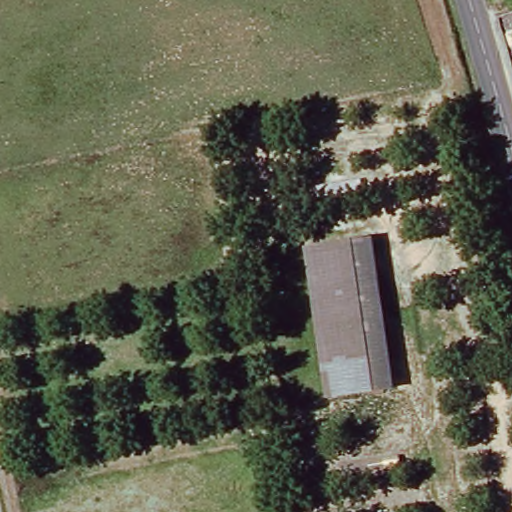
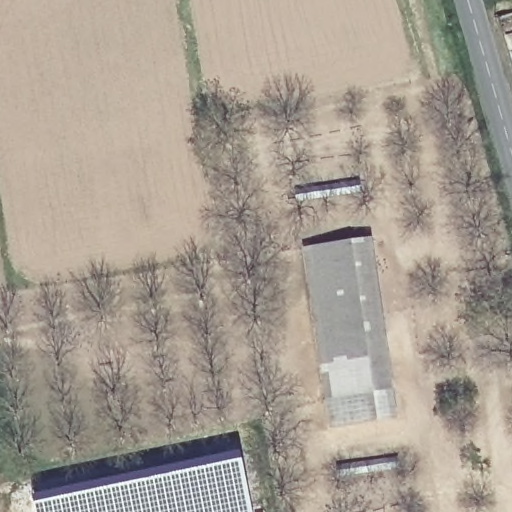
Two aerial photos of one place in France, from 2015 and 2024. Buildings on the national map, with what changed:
unchanged [(395,385),(335,400),(295,265),(292,256),(355,237),(395,385)]
new [(45,496),(55,495),(240,458),(254,512),(35,512),(32,499),(45,496)]
new [(263,511),(263,512),(258,512),(263,511)]

